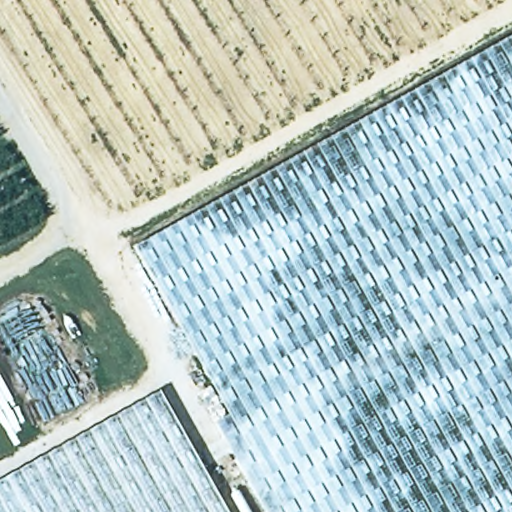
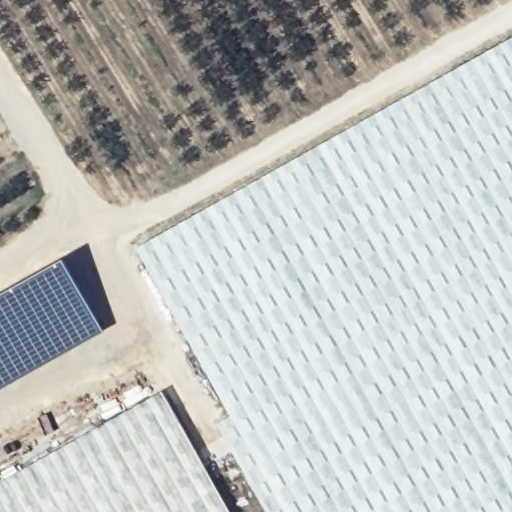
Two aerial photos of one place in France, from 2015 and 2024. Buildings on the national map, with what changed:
unchanged [(512,34),(512,512),(281,512),(128,245),(512,34)]
new [(63,255),(97,315),(104,331),(0,390),(0,290),(63,255)]
unchanged [(223,512),(0,512),(0,478),(156,392),(223,512)]

